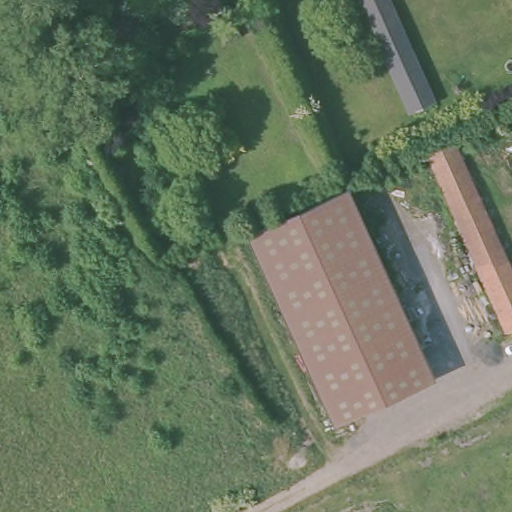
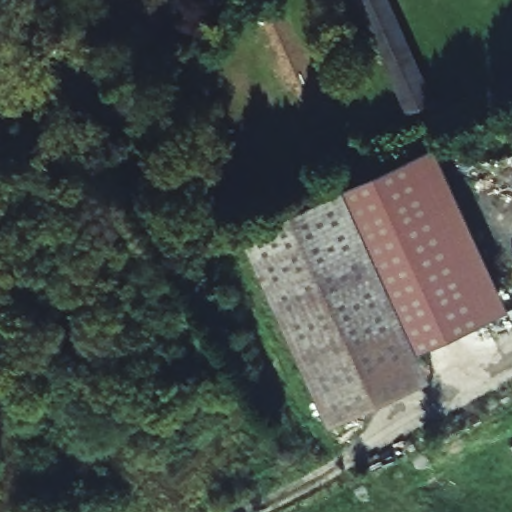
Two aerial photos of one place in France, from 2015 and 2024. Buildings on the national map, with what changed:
unchanged [(172,15),(135,31),(129,13),(158,0),(166,0),(172,15)]
unchanged [(407,115),(357,0),(391,0),(435,101),(407,115)]
new [(417,352),(344,186),(437,144),(510,309),(417,352)]
unchanged [(278,215),(344,186),(417,352),(314,398),(241,232),(278,215)]
unchanged [(417,352),(429,380),(326,425),(314,398),(417,352)]

